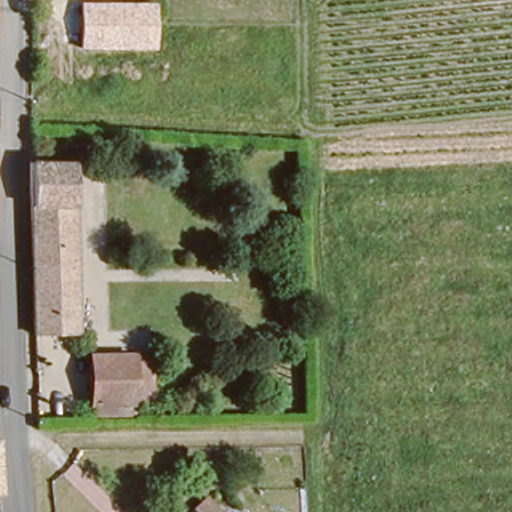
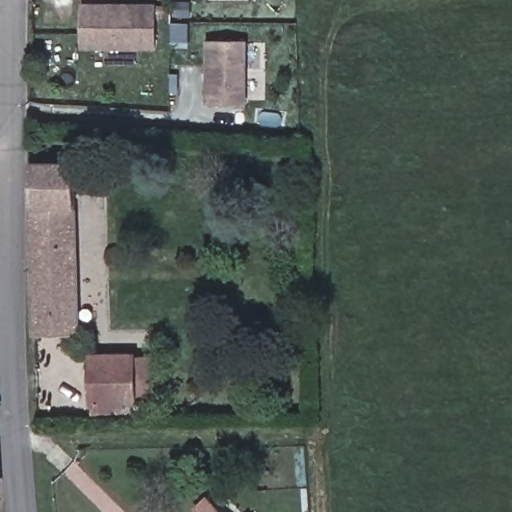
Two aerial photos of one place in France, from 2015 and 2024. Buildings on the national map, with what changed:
unchanged [(157,51),(79,51),(80,5),(158,5),(157,51)]
new [(247,105),(205,105),(206,40),(248,40),(247,105)]
unchanged [(25,159),(73,160),(73,335),(29,333),(25,159)]
unchanged [(127,357),(144,357),(145,405),(128,405),(128,415),(85,417),(85,357),(127,357)]
unchanged [(181,508),(191,495),(214,512),(185,512),(181,508)]

